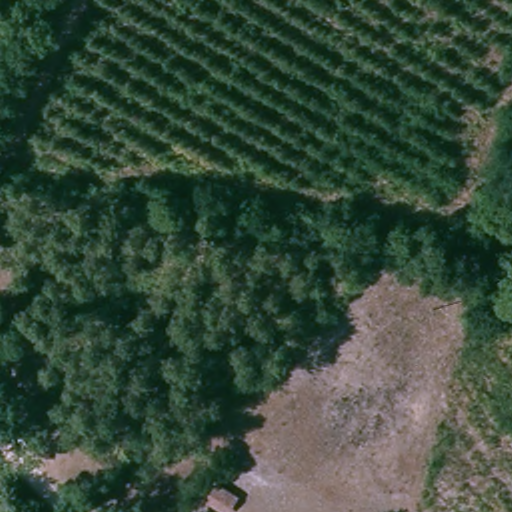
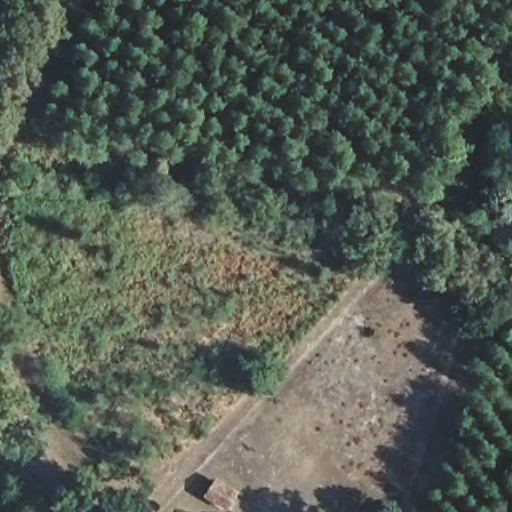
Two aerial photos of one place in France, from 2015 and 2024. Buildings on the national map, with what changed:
unchanged [(195,463),(216,483),(200,496),(178,477),(195,463)]

